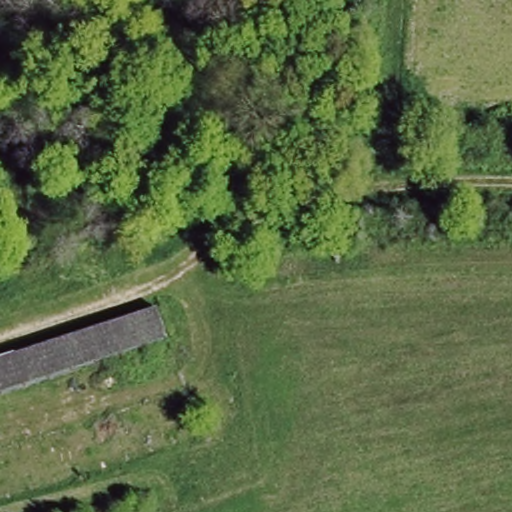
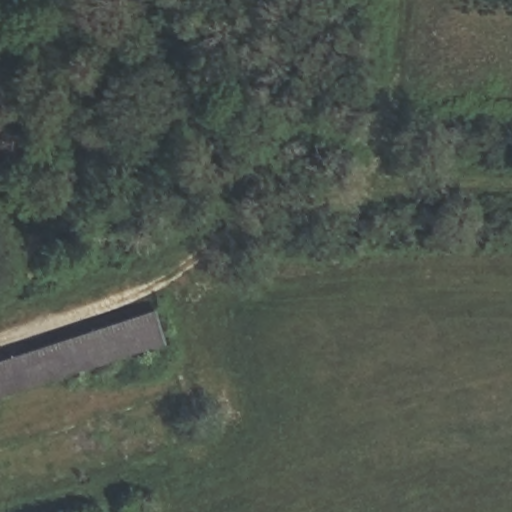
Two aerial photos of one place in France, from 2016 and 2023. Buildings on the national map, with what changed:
unchanged [(169,342),(0,393),(0,356),(158,306),(169,342)]

